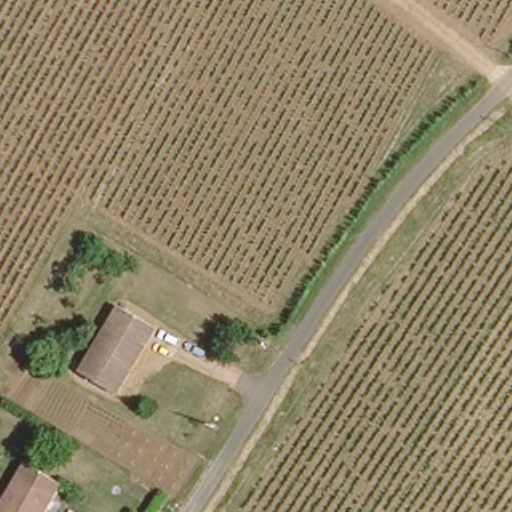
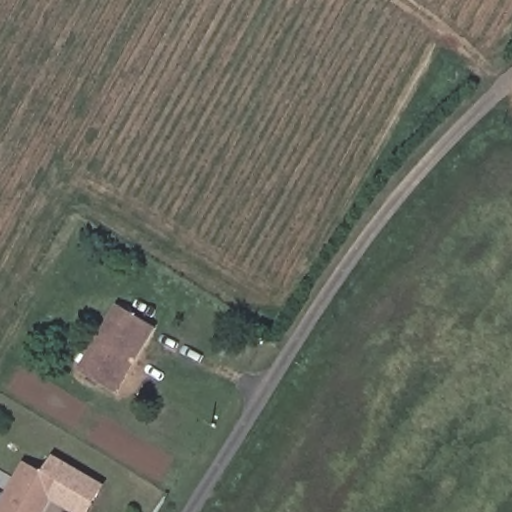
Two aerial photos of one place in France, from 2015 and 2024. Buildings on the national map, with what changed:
unchanged [(156,327),(115,395),(81,372),(122,306),(156,327)]
new [(105,488),(91,512),(68,512),(48,500),(57,482),(43,475),(53,457),(105,488)]
unchanged [(43,475),(57,482),(48,500),(41,512),(0,512),(0,507),(23,463),(43,475)]

